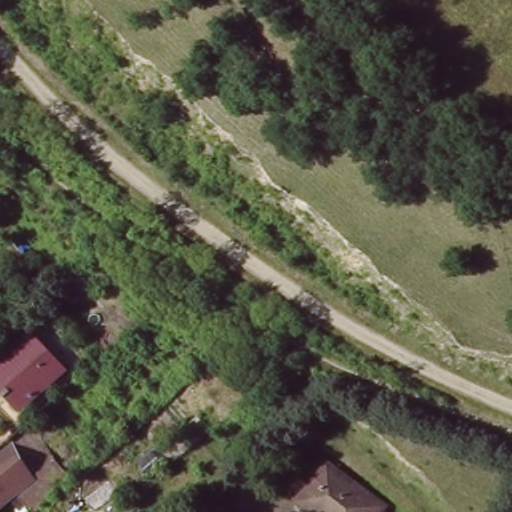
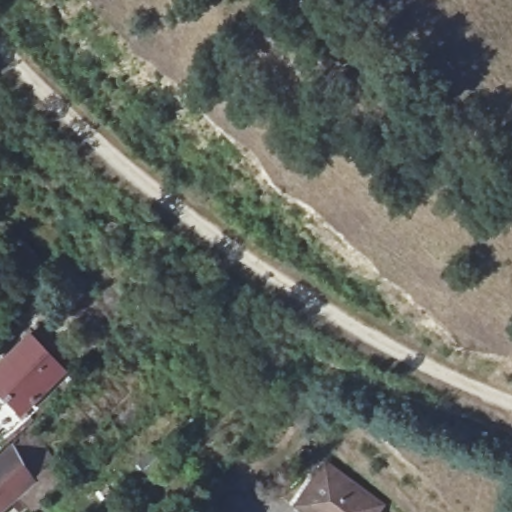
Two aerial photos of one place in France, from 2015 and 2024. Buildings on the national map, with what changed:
unchanged [(22,407),(9,395),(4,399),(0,395),(0,366),(4,362),(1,359),(25,336),(60,371),(22,407)]
unchanged [(68,483),(48,501),(51,505),(56,512),(34,512),(17,494),(0,509),(0,455),(31,427),(68,483)]
unchanged [(328,458),(354,480),(322,512),(310,512),(295,499),(328,458)]
unchanged [(381,502),(373,512),(322,512),(354,480),(381,502)]

